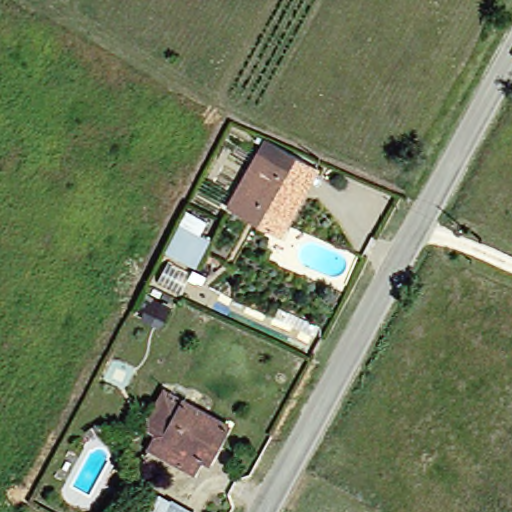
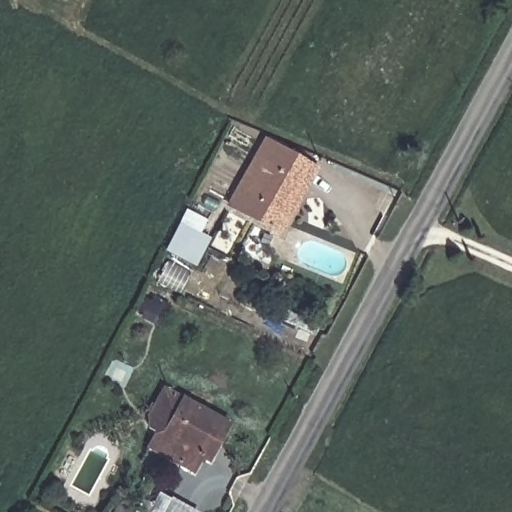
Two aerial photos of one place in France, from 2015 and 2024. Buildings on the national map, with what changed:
unchanged [(295,157),(258,222),(219,201),(255,135),(295,157)]
unchanged [(295,157),(307,164),(271,230),(258,222),(295,157)]
unchanged [(170,212),(201,227),(186,257),(155,241),(170,212)]
unchanged [(199,461),(191,457),(183,471),(140,447),(147,433),(144,432),(157,407),(167,412),(173,400),(218,424),(199,461)]
unchanged [(121,507),(118,512),(101,512),(109,500),(121,507)]

